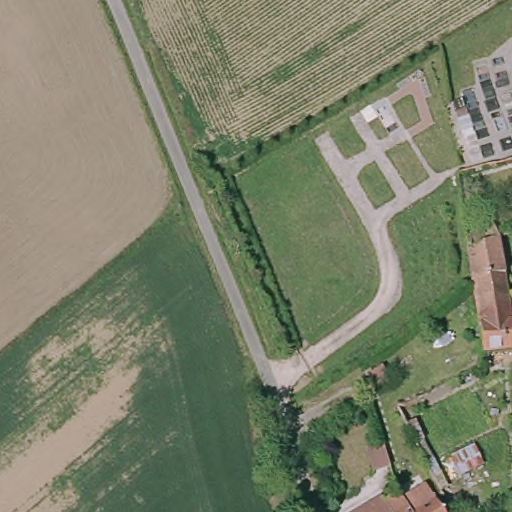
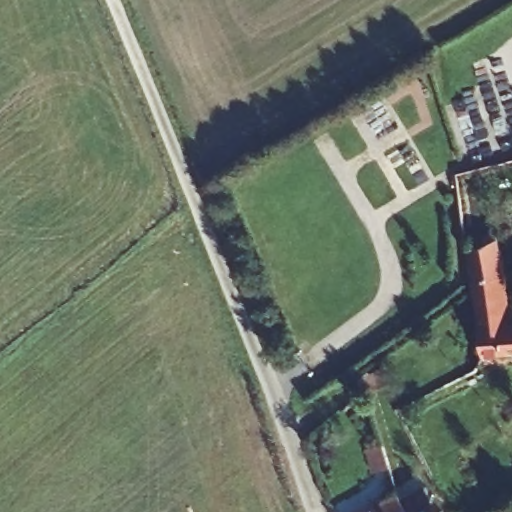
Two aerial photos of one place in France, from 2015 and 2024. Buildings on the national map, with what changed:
unchanged [(477,235),(490,229),(495,239),(500,278),(469,284),(465,253),(482,245),(477,235)]
unchanged [(500,278),(507,326),(512,326),(512,354),(484,355),(483,362),(473,363),(474,362),(476,355),(473,330),(470,295),(469,284),(500,278)]
unchanged [(405,483),(417,503),(439,489),(451,512),(403,512),(392,491),(405,483)]
unchanged [(403,512),(357,512),(392,491),(403,512)]

